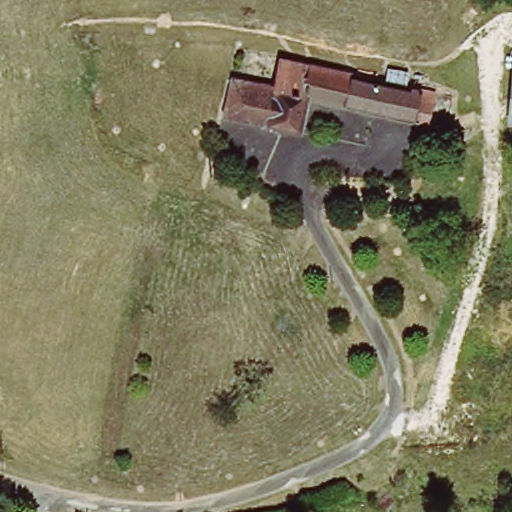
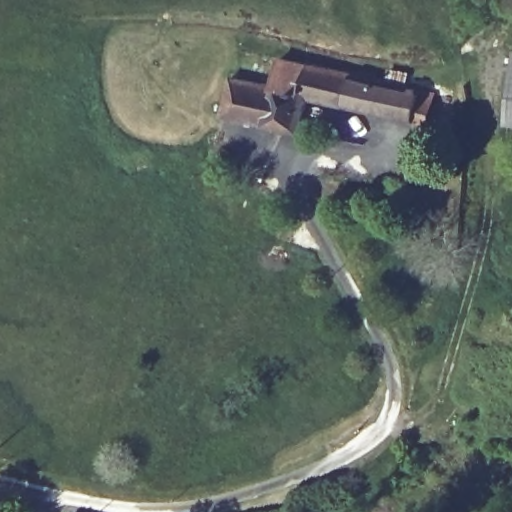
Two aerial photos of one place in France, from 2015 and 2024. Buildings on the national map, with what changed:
unchanged [(436,100),(428,133),(308,105),(299,138),(224,121),(234,80),(275,89),(283,61),(436,100)]
unchanged [(512,108),(512,123),(511,123),(512,108)]

